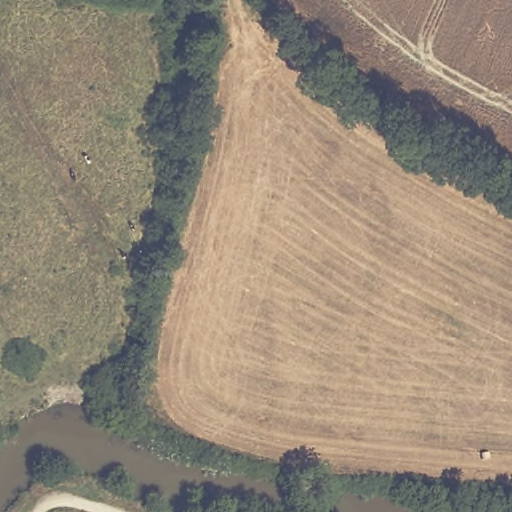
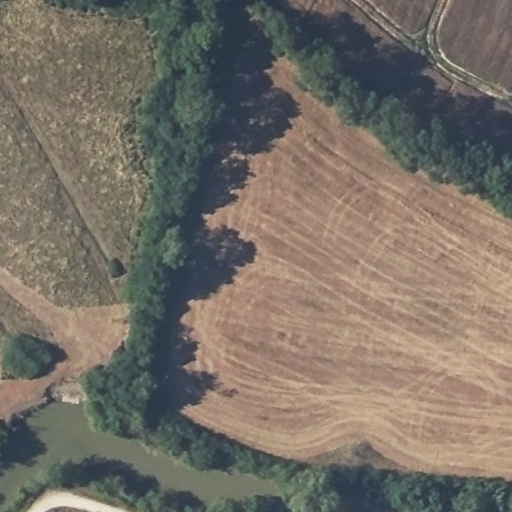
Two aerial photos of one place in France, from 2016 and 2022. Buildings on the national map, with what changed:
[]

